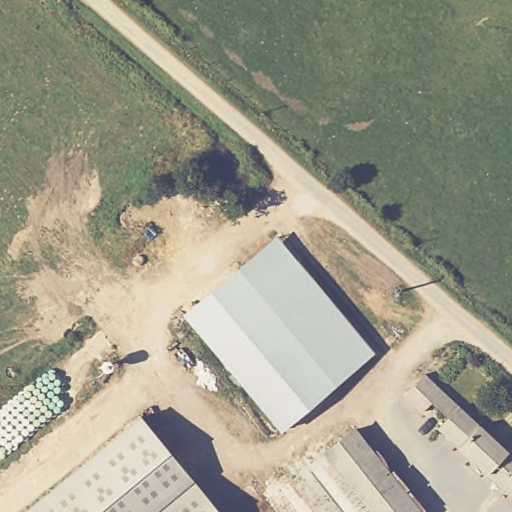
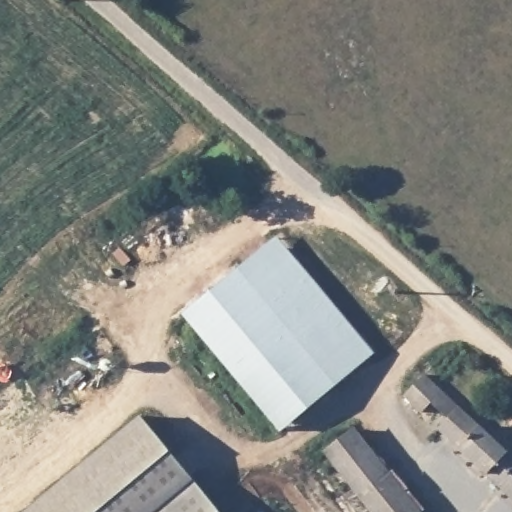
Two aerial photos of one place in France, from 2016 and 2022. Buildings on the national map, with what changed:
unchanged [(332,387),(241,267),(272,245),(282,239),(320,286),(375,356),(332,387)]
unchanged [(241,267),(332,387),(276,428),(184,307),(241,267)]
unchanged [(512,457),(512,501),(441,431),(451,422),(435,406),(425,415),(407,397),(430,376),(512,457)]
unchanged [(219,512),(29,512),(150,421),(219,512)]
unchanged [(415,512),(371,512),(328,448),(359,428),(415,512)]

